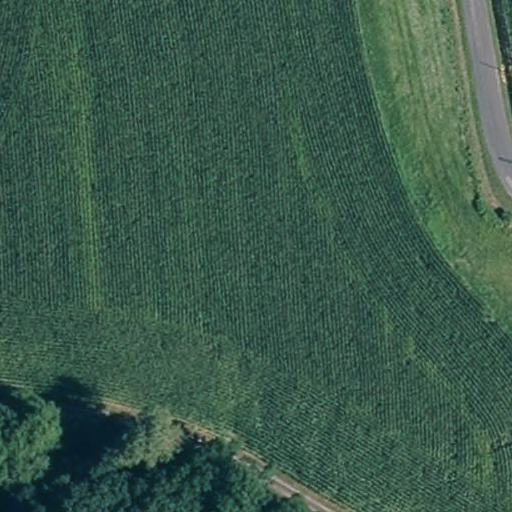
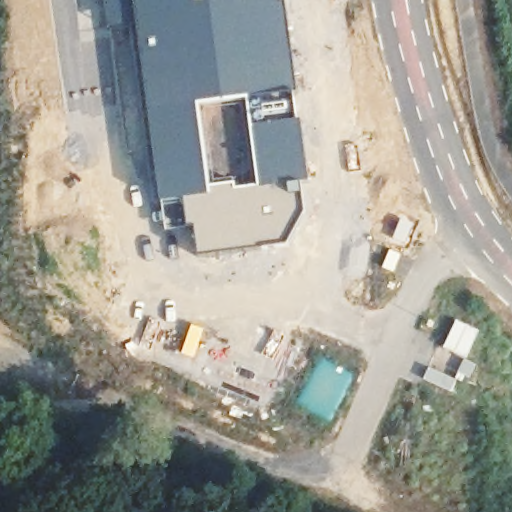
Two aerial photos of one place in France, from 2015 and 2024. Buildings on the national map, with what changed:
new [(199,258),(195,228),(188,229),(165,232),(161,204),(130,0),(284,0),(287,15),(298,106),(306,142),(311,183),(305,184),(307,214),(290,249),(199,258)]
new [(247,97),(258,188),(236,190),(235,185),(208,188),(198,106),(247,97)]

